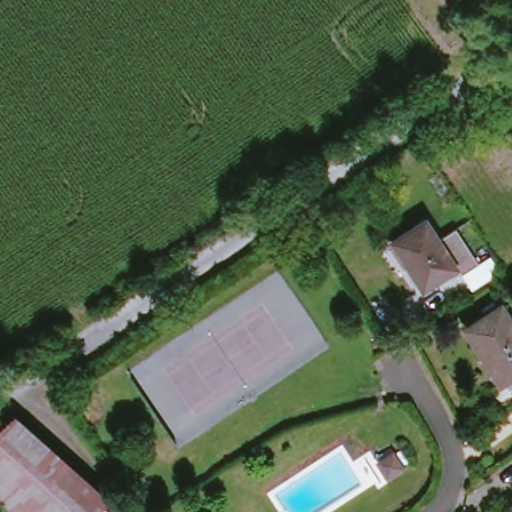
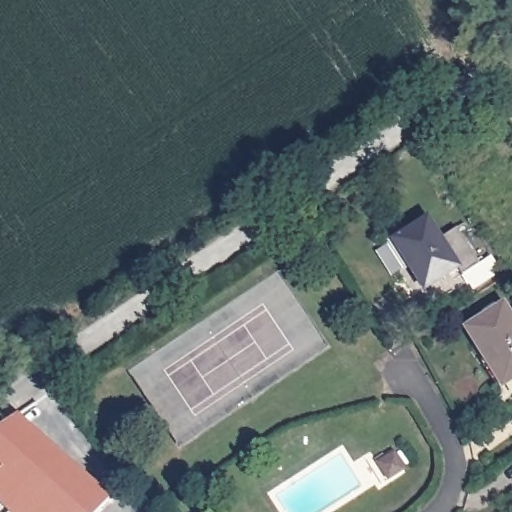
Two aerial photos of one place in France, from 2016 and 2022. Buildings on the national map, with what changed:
unchanged [(408,272),(410,270),(394,244),(425,224),(438,245),(455,234),(478,270),(462,280),(457,273),(422,295),(408,272)]
unchanged [(512,322),(512,384),(505,388),(472,334),(506,313),(512,322)]
unchanged [(117,505),(110,512),(13,512),(0,500),(0,437),(23,421),(117,505)]
unchanged [(393,454),(403,469),(388,479),(377,464),(393,454)]

